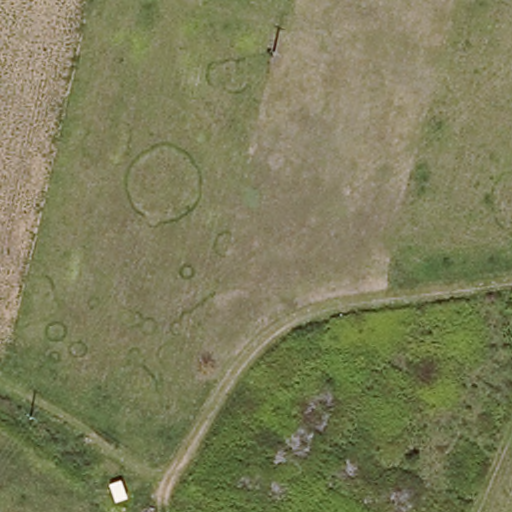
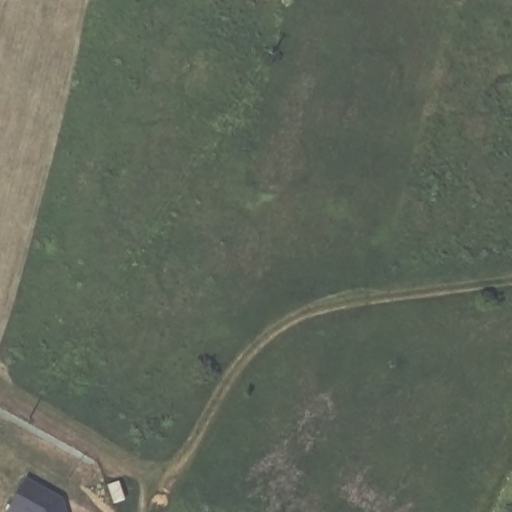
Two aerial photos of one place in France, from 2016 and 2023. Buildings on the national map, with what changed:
new [(64,498),(68,512),(6,512),(26,476),(64,498)]

